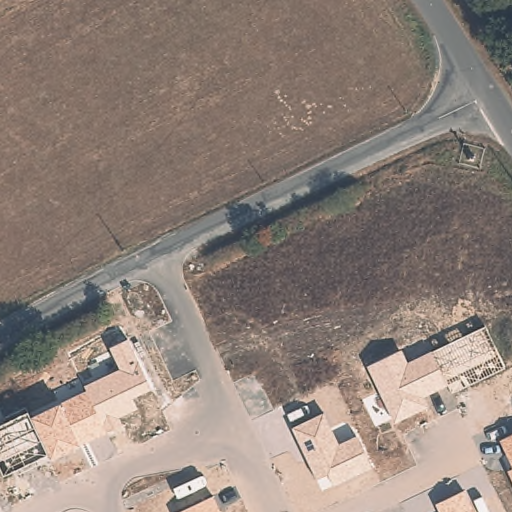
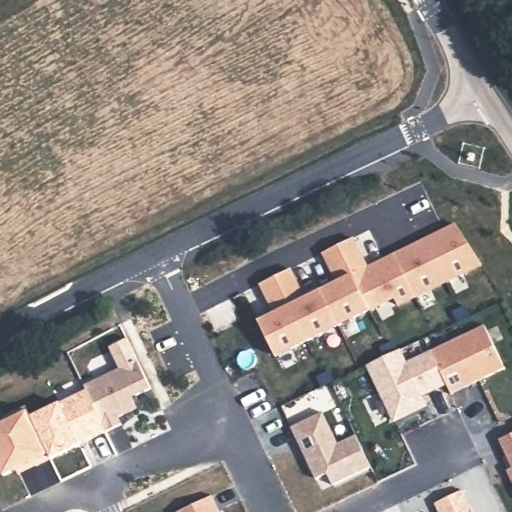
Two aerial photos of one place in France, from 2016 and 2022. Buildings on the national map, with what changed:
new [(482,265),(396,304),(393,297),(368,310),(273,356),(258,322),(274,313),(261,285),(290,270),(307,297),(342,281),(322,254),(352,239),(367,269),(456,225),(482,265)]
unchanged [(504,368),(450,395),(445,385),(423,397),(429,407),(395,422),(392,423),(366,367),(402,349),(408,362),(483,327),(504,368)]
unchanged [(131,397),(137,408),(118,416),(122,425),(4,478),(0,469),(0,424),(28,410),(32,417),(87,391),(83,387),(118,368),(108,347),(125,339),(147,388),(131,397)]
unchanged [(355,436),(369,467),(329,486),(325,474),(314,479),(291,428),(323,412),(339,442),(355,436)]
unchanged [(505,472),(510,469),(498,440),(512,434),(512,485),(505,472)]
unchanged [(475,512),(437,512),(432,504),(464,491),(475,512)]
unchanged [(212,496),(220,512),(178,512),(212,496)]

